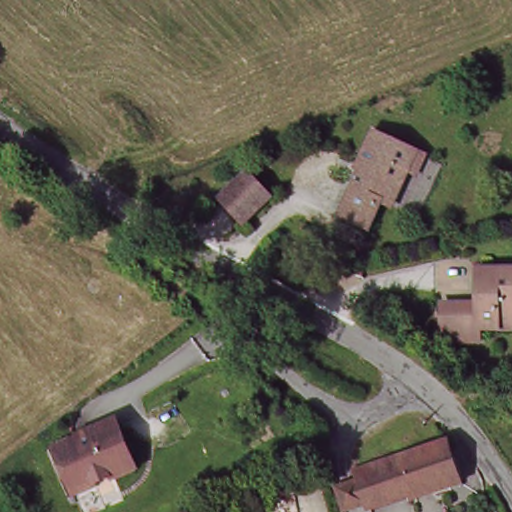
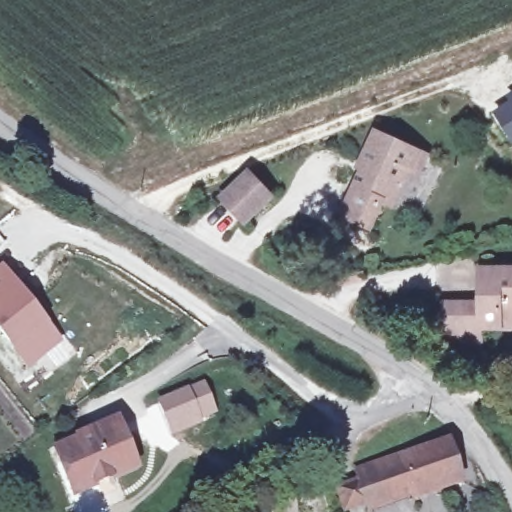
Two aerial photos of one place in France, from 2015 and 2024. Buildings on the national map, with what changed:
new [(510,101),(507,96),(512,92),(512,143),(492,112),(510,101)]
unchanged [(430,159),(425,171),(414,168),(396,206),(380,200),(368,228),(341,218),(364,169),(357,166),(372,134),(420,155),(430,159)]
unchanged [(275,197),(249,224),(223,200),(250,173),(275,197)]
new [(0,334),(0,266),(2,264),(62,342),(27,368),(0,334)]
unchanged [(439,301),(452,301),(477,300),(477,268),(512,269),(512,327),(476,327),(476,342),(452,342),(452,326),(439,326),(439,301)]
new [(189,387),(189,388),(203,382),(217,413),(202,420),(203,423),(172,436),(157,401),(189,387)]
unchanged [(131,467),(92,482),(94,488),(72,496),(52,445),(74,437),(77,443),(115,426),(131,467)]
unchanged [(332,480),(356,474),(354,465),(445,442),(457,489),(406,503),(402,492),(364,502),(363,501),(340,506),(332,480)]

